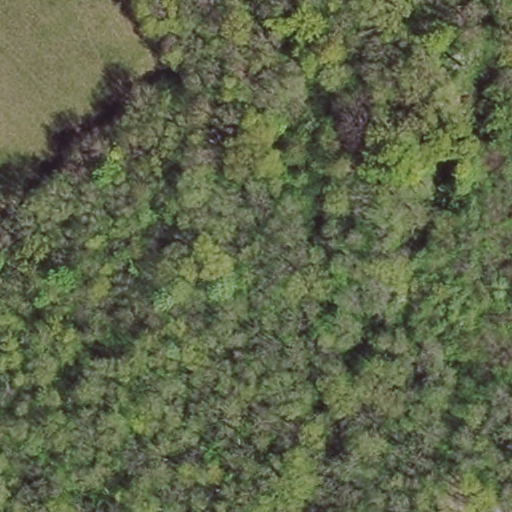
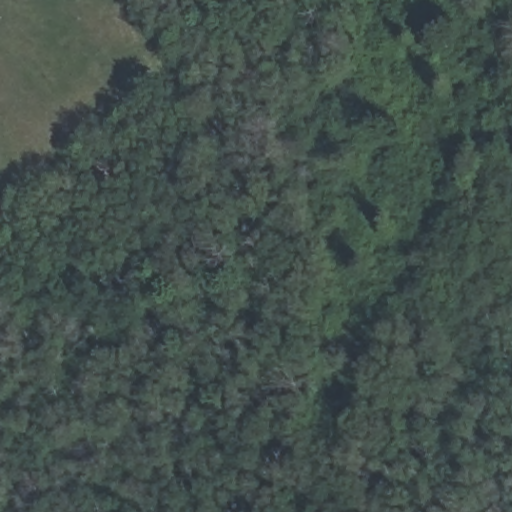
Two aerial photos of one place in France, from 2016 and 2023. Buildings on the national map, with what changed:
unchanged [(489,512),(492,508),(497,512),(489,512)]

